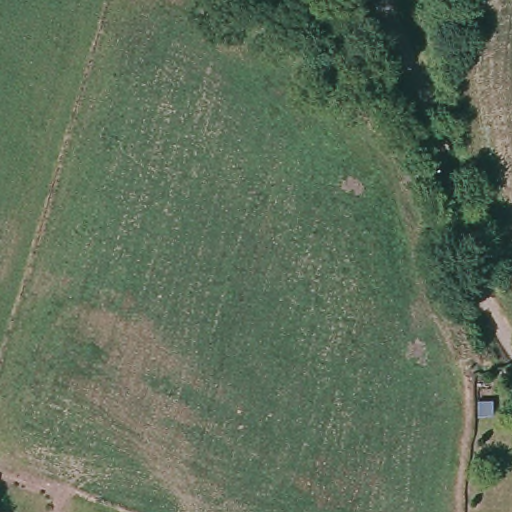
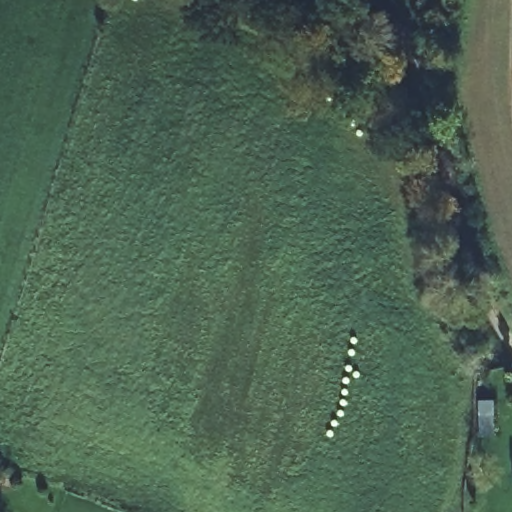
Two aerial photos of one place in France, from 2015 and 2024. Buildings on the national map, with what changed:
[]

